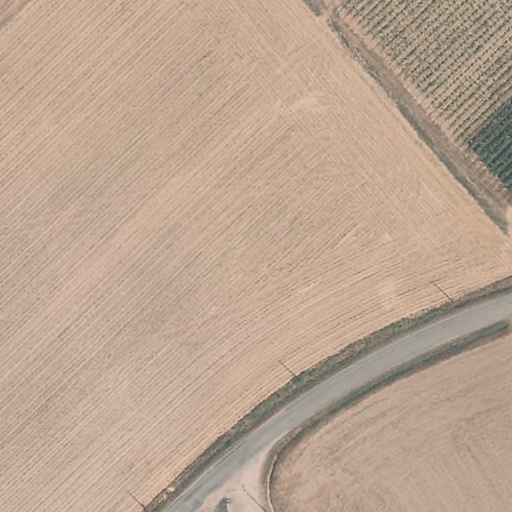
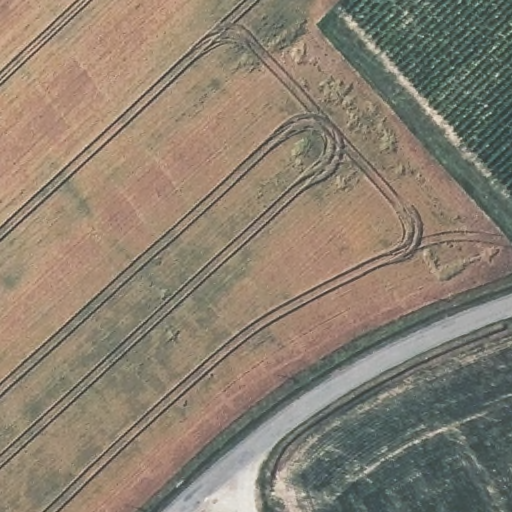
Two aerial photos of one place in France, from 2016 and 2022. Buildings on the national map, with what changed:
[]

